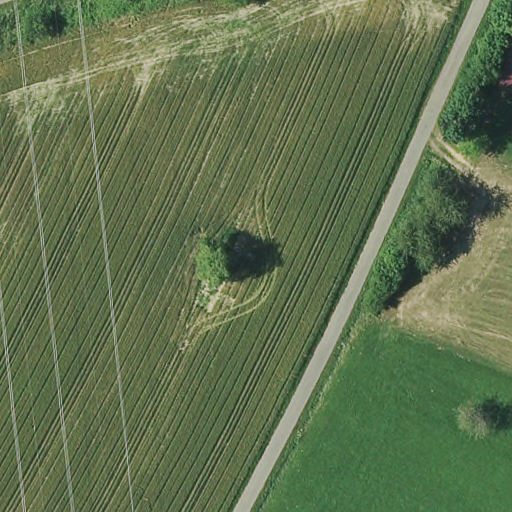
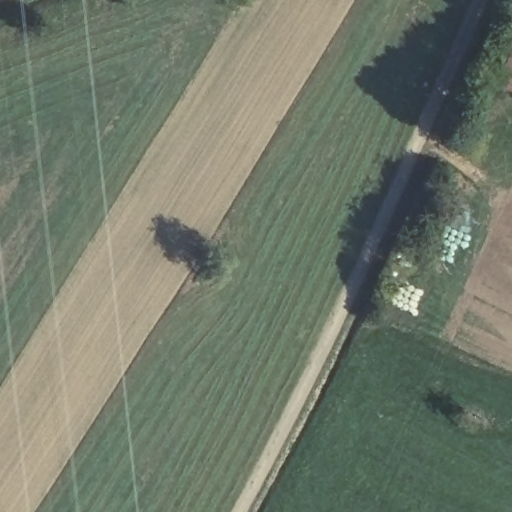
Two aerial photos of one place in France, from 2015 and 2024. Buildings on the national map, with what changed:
unchanged [(509,44),(512,44),(512,93),(495,89),(509,44)]

